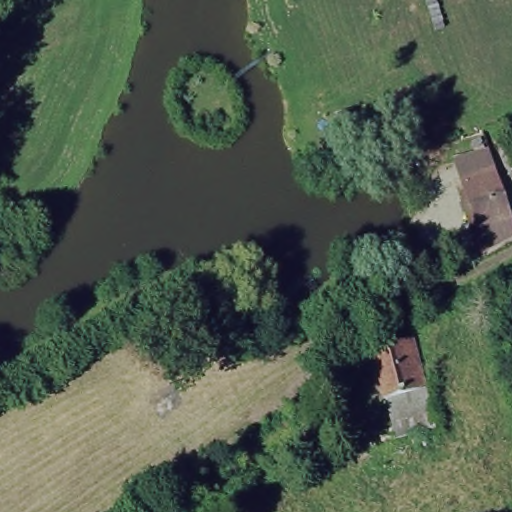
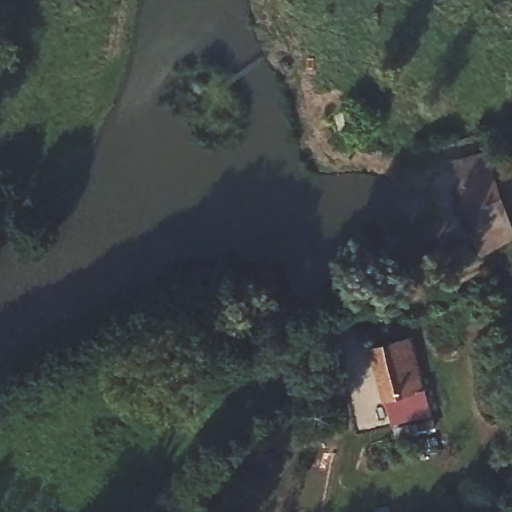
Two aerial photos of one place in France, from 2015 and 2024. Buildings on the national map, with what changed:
unchanged [(488,163),(503,207),(500,208),(506,224),(480,233),(474,217),(459,173),(488,163)]
unchanged [(426,268),(408,258),(415,244),(433,254),(426,268)]
unchanged [(395,438),(390,423),(372,348),(411,338),(430,413),(433,428),(395,438)]

